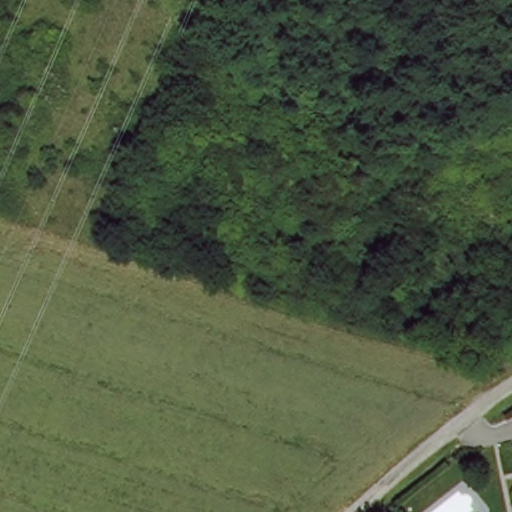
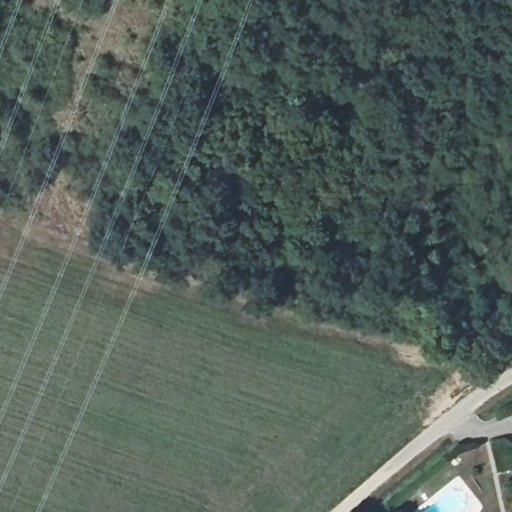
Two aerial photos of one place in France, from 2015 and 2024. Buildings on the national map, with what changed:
[]

